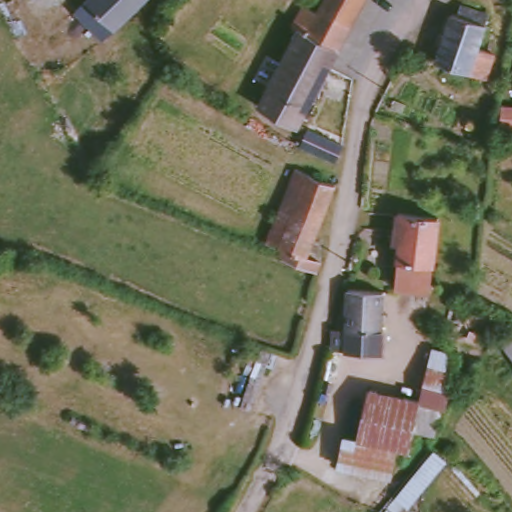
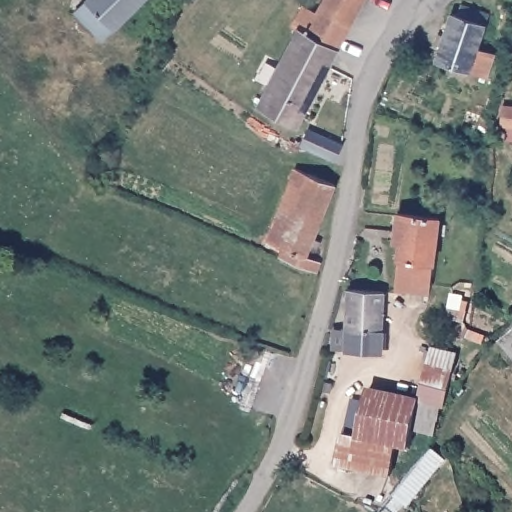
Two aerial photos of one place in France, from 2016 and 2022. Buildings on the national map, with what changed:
unchanged [(97,37),(71,9),(81,0),(136,0),(97,37)]
unchanged [(348,30),(321,15),(329,0),(363,0),(348,30)]
unchanged [(475,47),(487,50),(480,74),(432,60),(437,45),(431,44),(434,33),(440,34),(445,13),(456,15),(457,7),(482,15),(475,47)]
unchanged [(348,30),(299,127),(296,126),(262,109),(301,33),(296,30),(309,8),(321,15),(348,30)]
unchanged [(497,123),(499,106),(512,107),(512,124),(497,123)]
unchanged [(309,125),(342,141),(335,157),(302,142),(309,125)]
unchanged [(304,256),(316,262),(315,266),(313,275),(273,259),(276,251),(260,243),(289,171),(330,188),(304,256)]
unchanged [(432,220),(427,283),(395,280),(397,242),(388,241),(390,213),(392,213),(432,220)]
unchanged [(375,347),(344,343),(345,326),(342,325),(345,285),(381,286),(382,287),(375,347)]
unchanged [(506,346),(512,342),(512,354),(506,346)]
unchanged [(414,402),(420,369),(448,375),(442,409),(432,407),(429,422),(410,419),(414,402)]
unchanged [(363,390),(414,402),(410,419),(404,449),(387,446),(353,440),(363,390)]
unchanged [(387,446),(382,477),(334,470),(339,437),(353,440),(387,446)]

